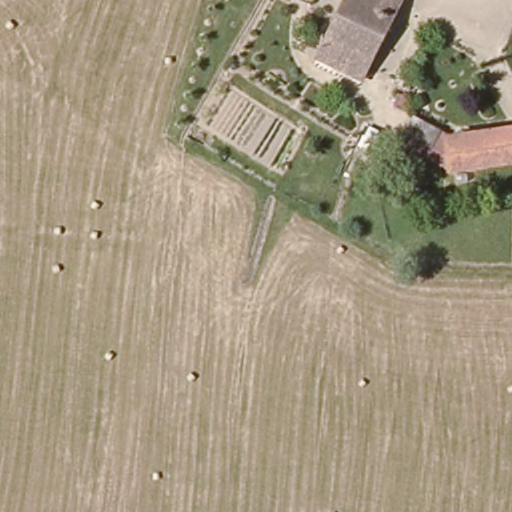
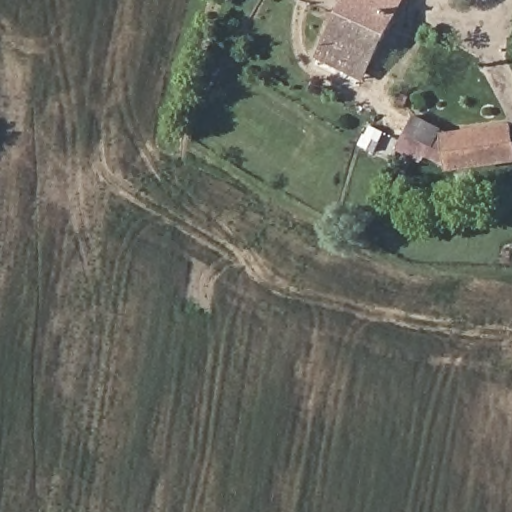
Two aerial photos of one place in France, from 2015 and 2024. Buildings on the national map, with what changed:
unchanged [(320,59),(351,0),(407,0),(365,79),(363,85),(317,65),(320,59)]
unchanged [(415,105),(411,115),(400,109),(402,100),(415,105)]
unchanged [(443,138),(435,154),(411,140),(420,125),(443,138)]
unchanged [(455,171),(451,139),(512,132),(512,165),(455,171)]

